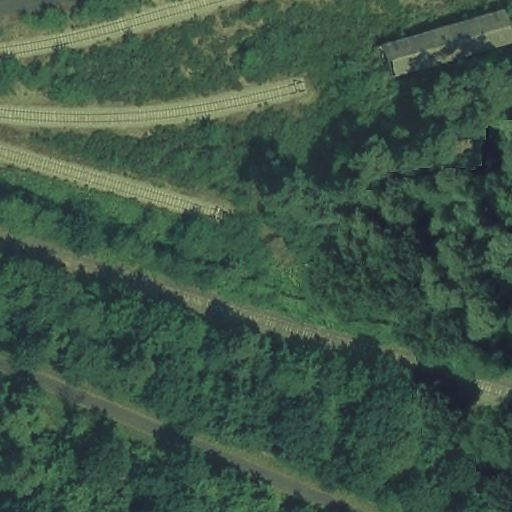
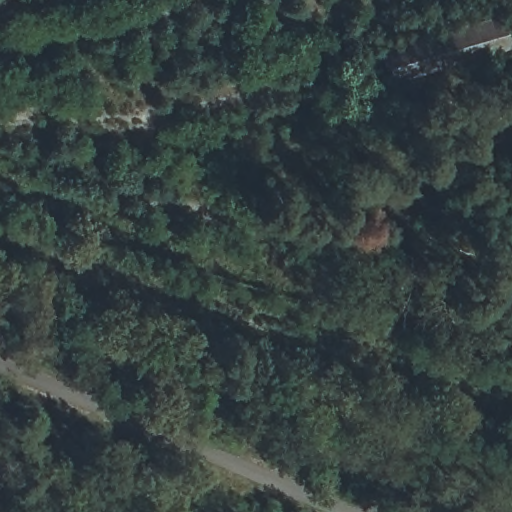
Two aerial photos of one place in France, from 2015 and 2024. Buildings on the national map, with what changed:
unchanged [(384,46),(502,12),(512,47),(392,81),(384,46)]

